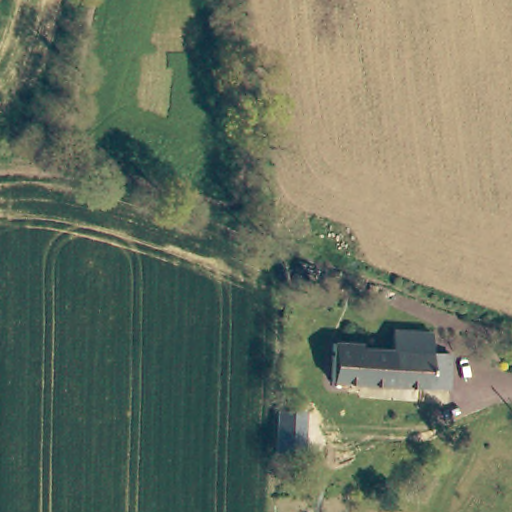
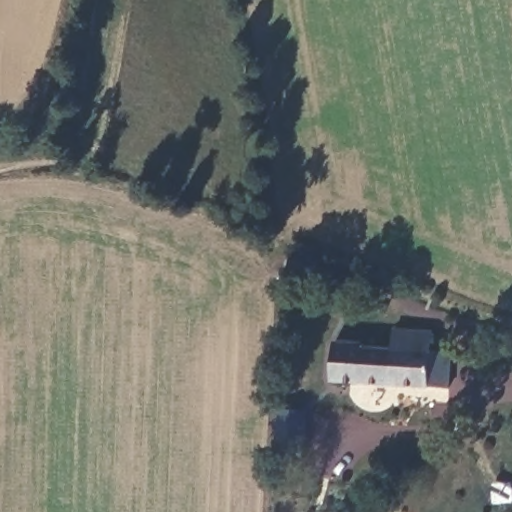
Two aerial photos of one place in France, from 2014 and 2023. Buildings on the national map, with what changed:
unchanged [(447,388),(426,387),(331,377),(335,340),(362,342),(362,347),(393,351),(396,331),(431,335),(429,355),(451,357),(447,388)]

